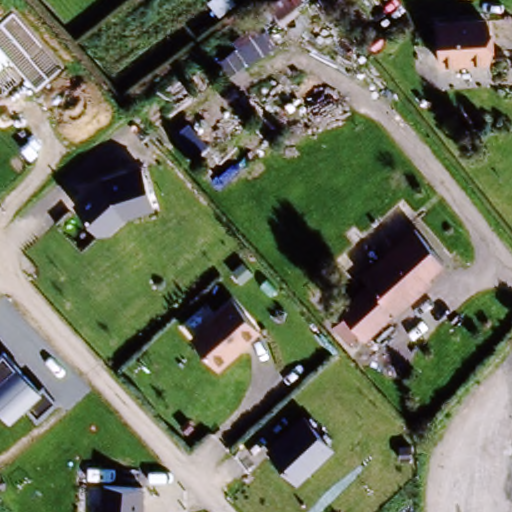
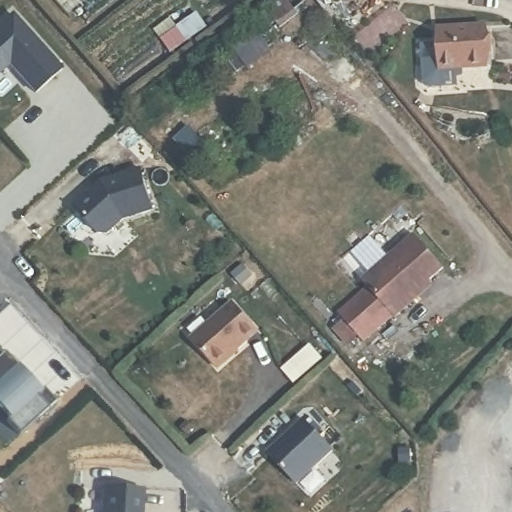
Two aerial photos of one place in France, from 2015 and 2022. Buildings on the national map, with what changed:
new [(36,93),(10,65),(0,74),(0,23),(13,11),(62,69),(36,93)]
unchanged [(483,63),(437,64),(436,22),(482,21),(483,63)]
unchanged [(153,209),(124,218),(102,237),(72,207),(105,177),(143,167),(153,209)]
unchanged [(393,312),(363,338),(340,311),(370,285),(362,277),(410,235),(440,268),(412,292),(416,297),(395,314),(393,312)]
unchanged [(252,332),(241,342),(244,344),(215,371),(187,343),(227,305),(252,332)]
unchanged [(40,389),(44,386),(57,400),(38,417),(30,406),(12,421),(0,407),(0,361),(6,355),(40,389)]
unchanged [(329,453),(294,486),(265,455),(300,422),(329,453)]
unchanged [(139,491),(138,512),(98,512),(99,489),(139,491)]

